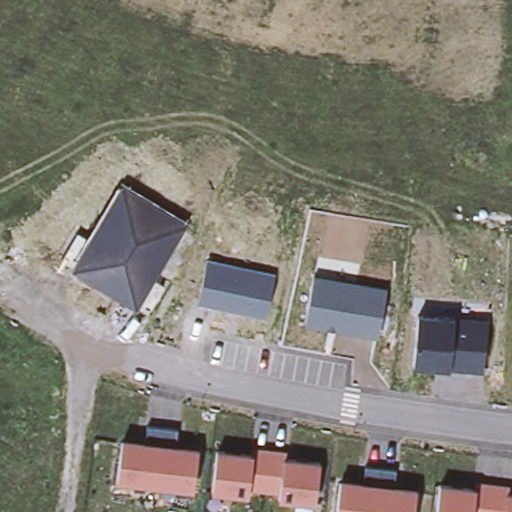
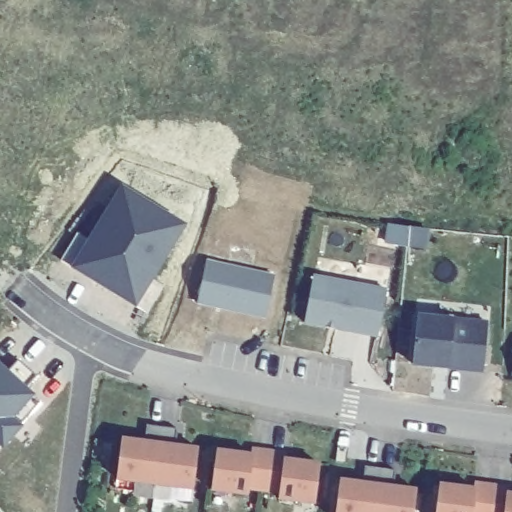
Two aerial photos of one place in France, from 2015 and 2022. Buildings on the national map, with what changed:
unchanged [(70,268),(73,262),(63,261),(79,234),(88,236),(119,184),(188,222),(155,278),(165,286),(148,312),(138,303),(135,307),(70,268)]
unchanged [(198,301),(207,260),(276,275),(266,317),(198,301)]
unchanged [(377,337),(303,323),(313,278),(386,291),(377,337)]
unchanged [(412,366),(418,315),(455,320),(489,322),(483,373),(449,366),(449,369),(412,366)]
new [(15,360),(33,377),(21,390),(37,404),(0,445),(0,371),(3,373),(15,360)]
unchanged [(191,492),(115,482),(121,437),(198,447),(191,492)]
unchanged [(252,456),(253,446),(285,451),(285,460),(320,465),(313,506),(278,501),(279,491),(248,487),(246,496),(212,492),(218,451),(252,456)]
unchanged [(412,512),(337,512),(341,480),(415,490),(412,512)]
unchanged [(476,491),(477,482),(507,486),(506,494),(512,495),(512,512),(437,512),(440,487),(476,491)]

